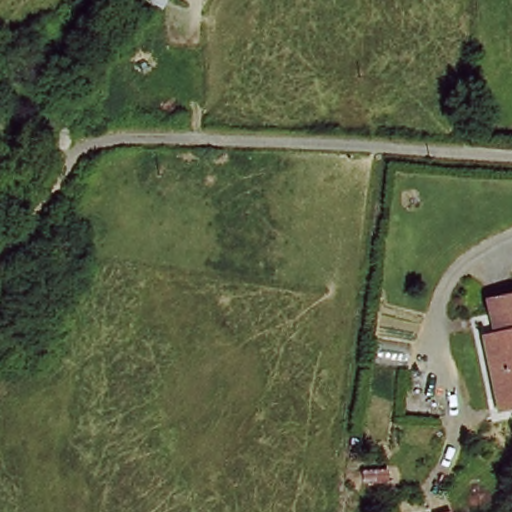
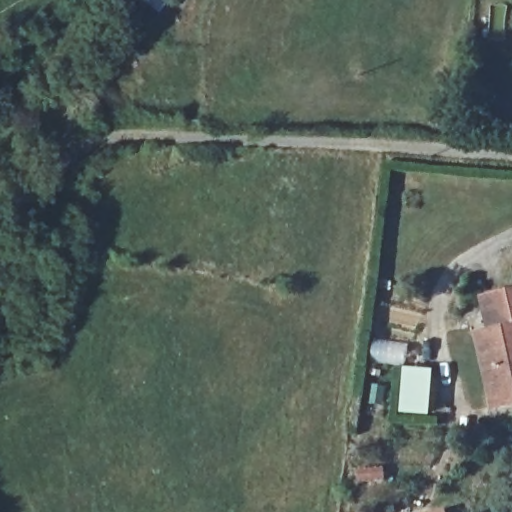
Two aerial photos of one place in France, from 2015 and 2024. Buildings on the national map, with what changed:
unchanged [(478,330),(489,326),(481,296),(512,289),(512,403),(496,406),(478,330)]
new [(432,417),(402,414),(406,369),(436,372),(432,417)]

